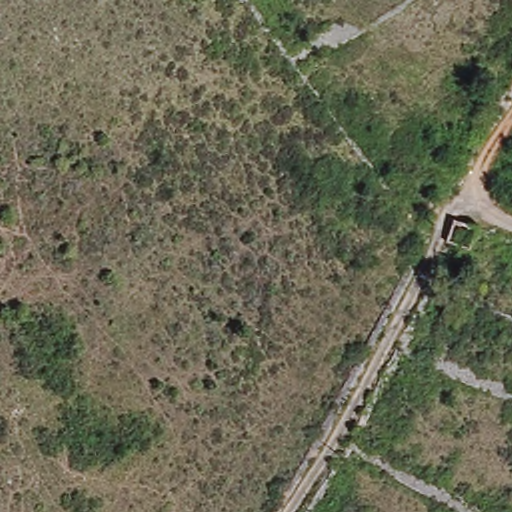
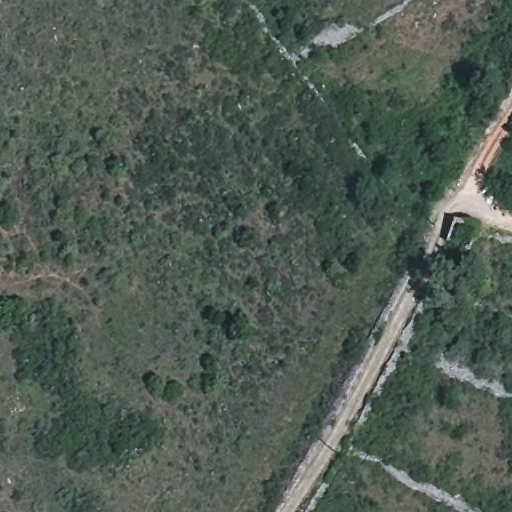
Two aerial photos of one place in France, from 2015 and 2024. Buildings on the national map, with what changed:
unchanged [(474,232),(452,227),(460,206),(478,213),(474,232)]

